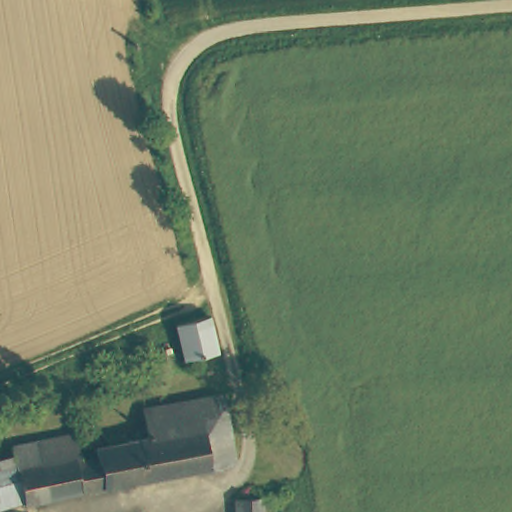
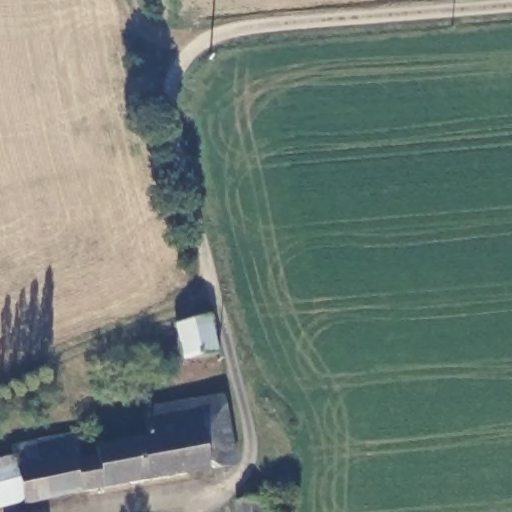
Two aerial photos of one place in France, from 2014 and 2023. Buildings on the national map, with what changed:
unchanged [(216,316),(225,352),(191,359),(183,323),(216,316)]
unchanged [(238,421),(245,458),(116,485),(110,450),(108,442),(147,433),(141,410),(206,394),(231,389),(238,421)]
unchanged [(37,439),(88,428),(93,455),(100,487),(38,500),(37,497),(29,455),(26,441),(37,439)]
unchanged [(37,497),(0,508),(0,462),(29,455),(37,497)]
unchanged [(279,512),(252,512),(251,497),(278,496),(279,512)]

